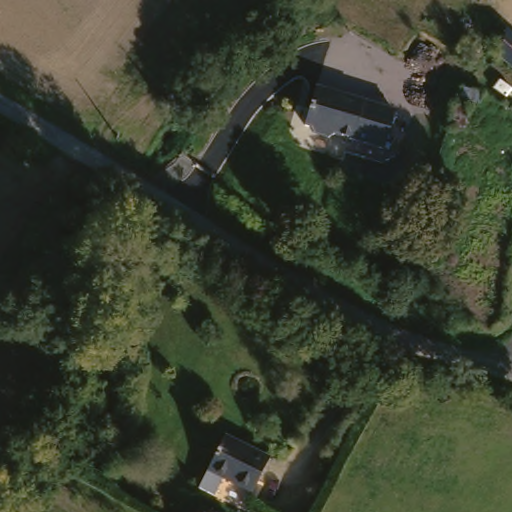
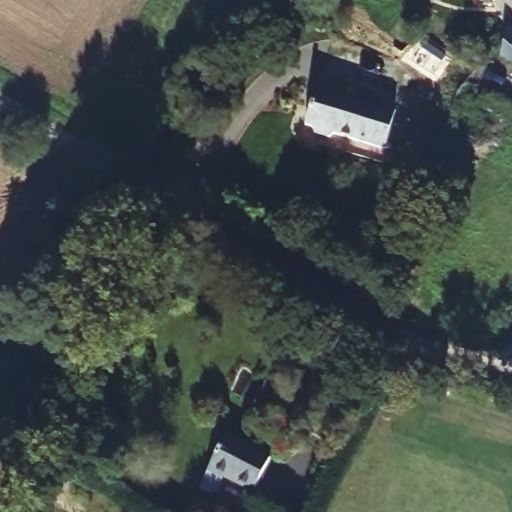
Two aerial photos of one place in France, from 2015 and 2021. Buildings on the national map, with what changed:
unchanged [(507,54),(512,36),(512,58),(507,54)]
unchanged [(398,110),(382,146),(336,125),(329,128),(315,122),(312,115),(307,113),(323,77),(398,110)]
unchanged [(234,470),(225,488),(209,480),(218,462),(236,428),(278,450),(262,484),(234,470)]

